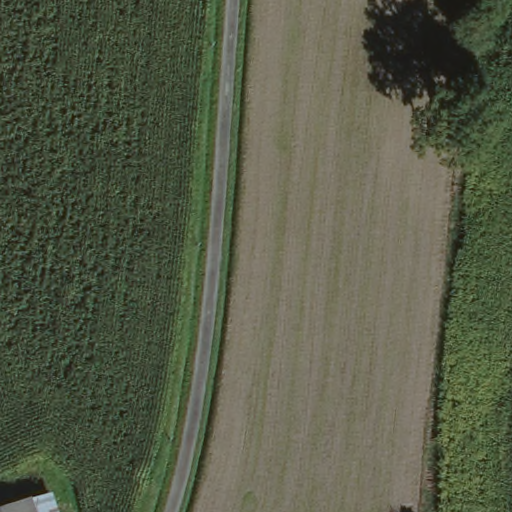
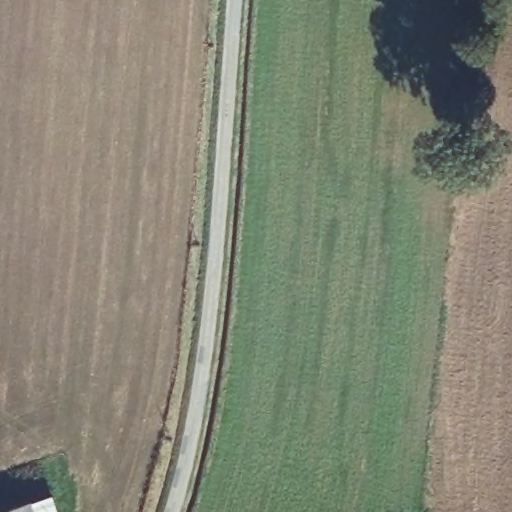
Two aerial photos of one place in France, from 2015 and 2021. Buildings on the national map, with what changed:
unchanged [(21,503),(25,512),(0,512),(0,509),(21,503)]

